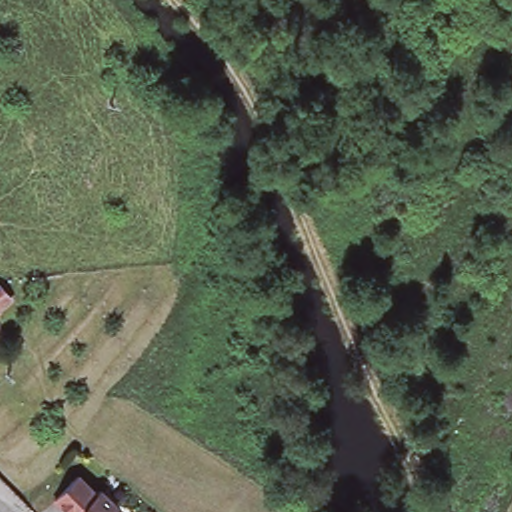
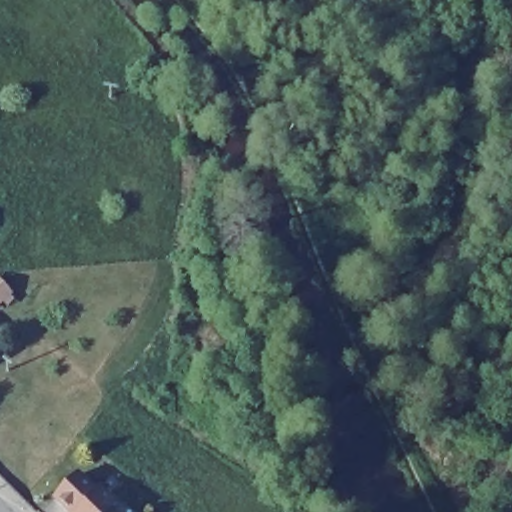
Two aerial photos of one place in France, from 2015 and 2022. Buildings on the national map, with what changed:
unchanged [(2,293),(0,294),(0,290),(2,293)]
unchanged [(95,497),(99,493),(117,511),(116,512),(63,512),(53,503),(77,479),(95,497)]

